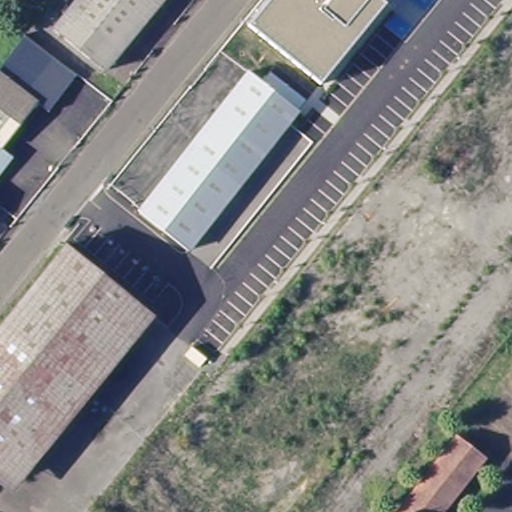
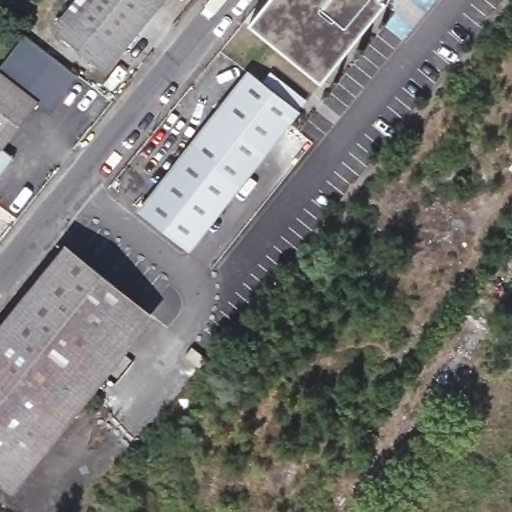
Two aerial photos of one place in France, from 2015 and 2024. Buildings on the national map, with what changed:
unchanged [(53,32),(80,0),(162,0),(102,72),(53,32)]
unchanged [(379,0),(384,4),(320,83),(249,25),(270,0),(380,0),(379,0)]
unchanged [(30,40),(55,61),(25,97),(0,76),(30,40)]
unchanged [(55,61),(80,81),(50,117),(40,108),(2,153),(16,164),(0,184),(0,76),(25,97),(55,61)]
unchanged [(140,209),(249,72),(295,112),(285,125),(187,247),(140,209)]
unchanged [(305,99),(295,112),(264,85),(270,72),(305,99)]
unchanged [(0,339),(69,253),(140,311),(0,484),(0,339)]
unchanged [(12,496),(0,487),(0,484),(140,311),(154,322),(12,496)]
unchanged [(188,356),(193,360),(187,368),(172,357),(178,349),(188,356)]
demolished [(441,512),(398,512),(457,437),(483,459),(441,512)]

